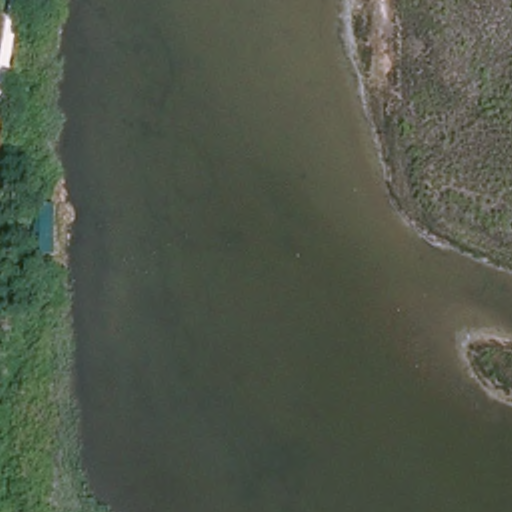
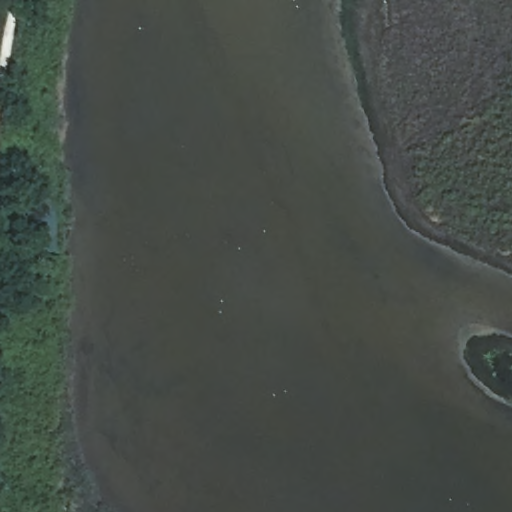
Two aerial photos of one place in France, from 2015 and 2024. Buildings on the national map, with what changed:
unchanged [(43,201),(57,201),(56,254),(42,255),(42,246),(43,201)]

